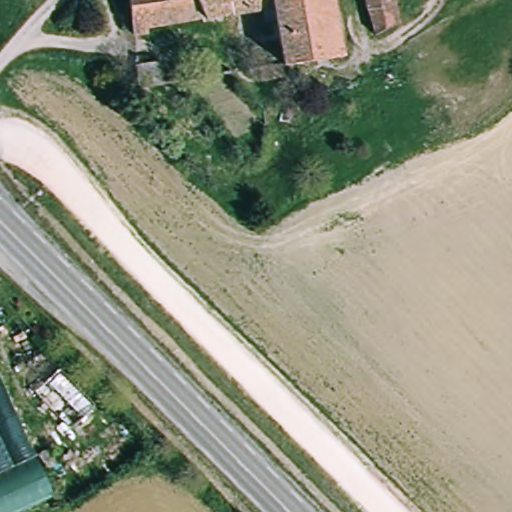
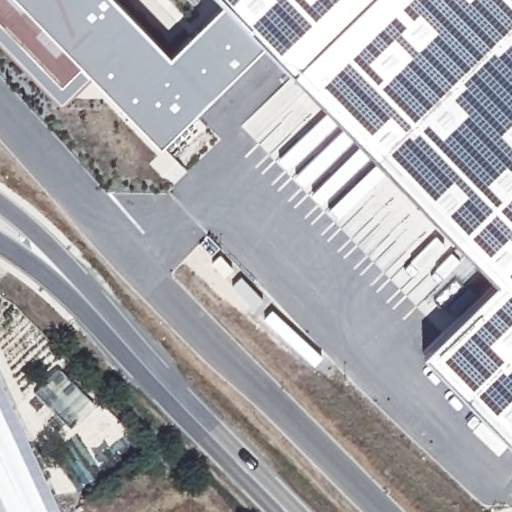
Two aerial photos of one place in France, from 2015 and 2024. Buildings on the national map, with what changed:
new [(161,142),(24,2),(1,23),(0,22),(0,0),(118,0),(170,53),(223,0),(512,0),(512,441),(425,350),(500,279),(266,41),(161,142)]
demolished [(311,62),(286,67),(276,10),(232,15),(163,26),(164,34),(135,37),(131,0),(334,0),(344,57),(311,62)]
demolished [(376,36),(369,11),(366,0),(397,0),(402,22),(376,36)]
new [(0,22),(1,23),(24,2),(92,71),(61,99),(0,36),(0,22)]
demolished [(158,85),(136,89),(133,66),(155,62),(158,85)]
unchanged [(0,466),(0,374),(35,450),(0,466)]
unchanged [(54,495),(15,512),(0,512),(0,466),(35,450),(54,495)]
new [(57,512),(15,512),(51,496),(57,512)]

